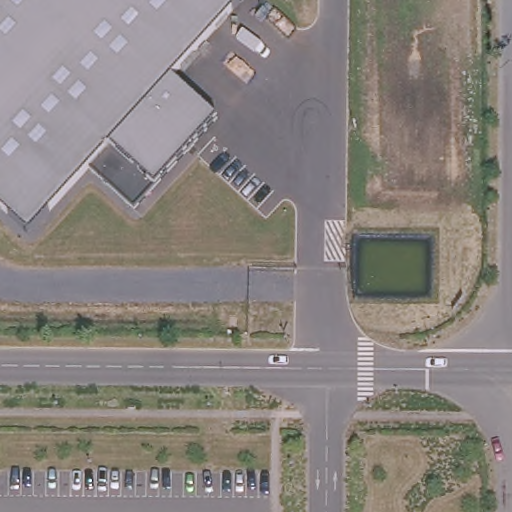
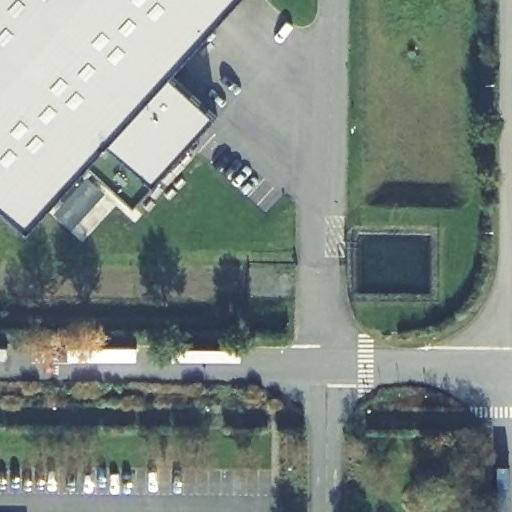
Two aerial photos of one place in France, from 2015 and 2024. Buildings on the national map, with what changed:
unchanged [(165,71),(212,114),(152,179),(129,202),(85,162),(27,226),(0,202),(0,0),(230,0),(165,71)]

